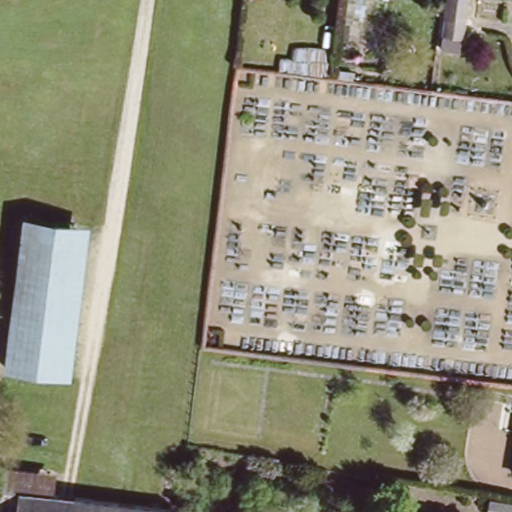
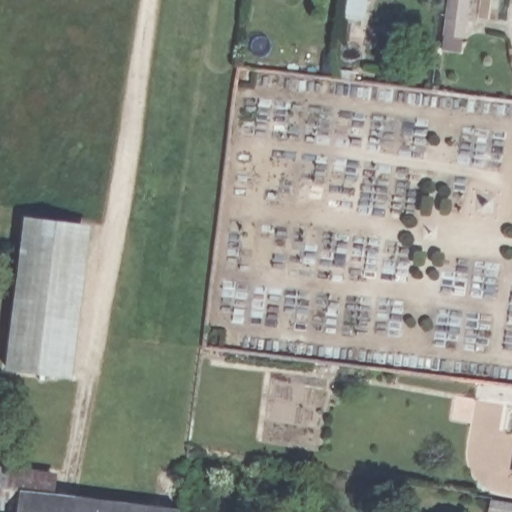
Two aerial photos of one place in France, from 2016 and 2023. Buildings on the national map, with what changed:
unchanged [(439,26),(438,26),(442,0),(467,0),(463,30),(439,26)]
unchanged [(90,227),(72,374),(8,368),(25,218),(90,227)]
unchanged [(57,465),(55,494),(20,489),(17,511),(0,509),(0,458),(57,465)]
unchanged [(17,511),(20,489),(55,494),(177,509),(177,512),(17,512),(17,511)]

